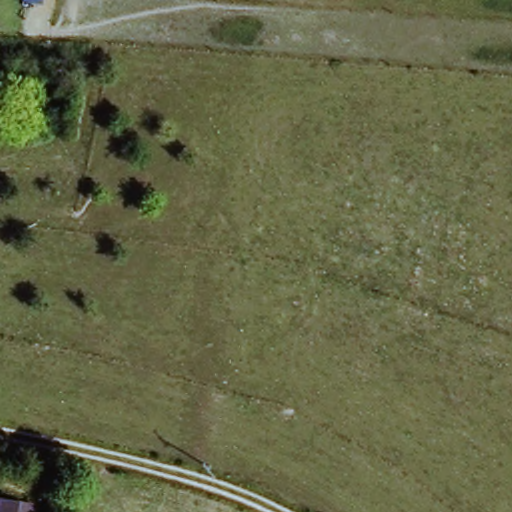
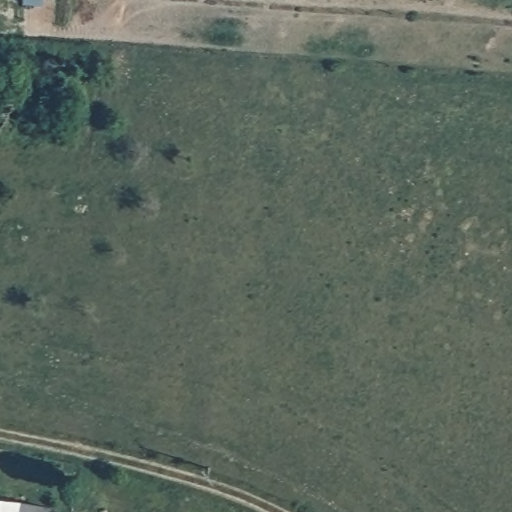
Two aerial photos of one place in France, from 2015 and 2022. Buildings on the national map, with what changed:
unchanged [(22,0),(42,0),(41,5),(22,2),(22,0)]
unchanged [(22,499),(20,512),(0,512),(0,495),(22,499)]
unchanged [(61,512),(20,512),(22,499),(62,506),(61,512)]

